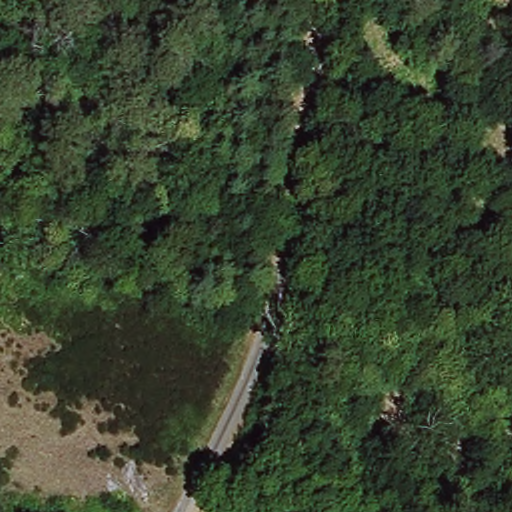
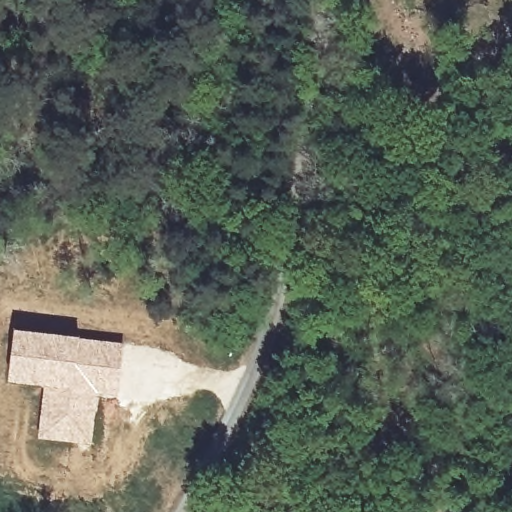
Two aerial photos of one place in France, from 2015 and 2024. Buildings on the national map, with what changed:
new [(13,331),(123,344),(118,398),(99,396),(92,447),(37,440),(43,387),(6,382),(13,331)]

